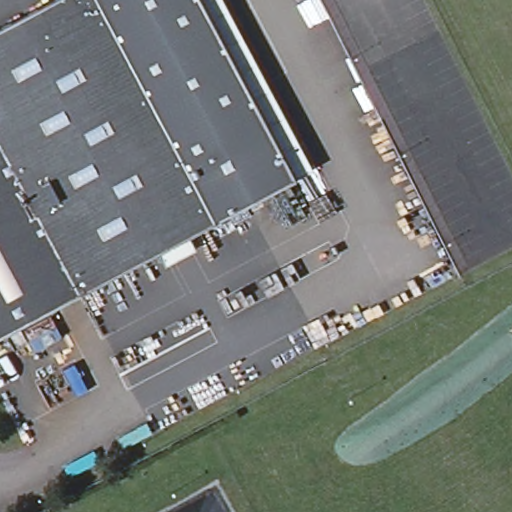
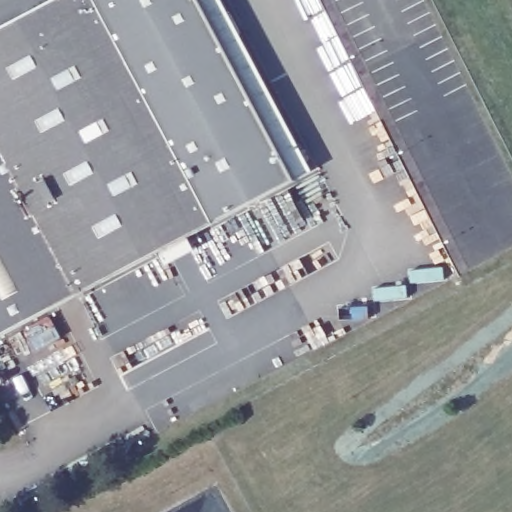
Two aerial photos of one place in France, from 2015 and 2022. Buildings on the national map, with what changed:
unchanged [(211,223),(76,293),(0,148),(0,25),(48,0),(95,0),(211,223)]
unchanged [(309,169),(213,219),(98,0),(220,0),(309,169)]
unchanged [(0,333),(0,148),(76,293),(0,333)]

